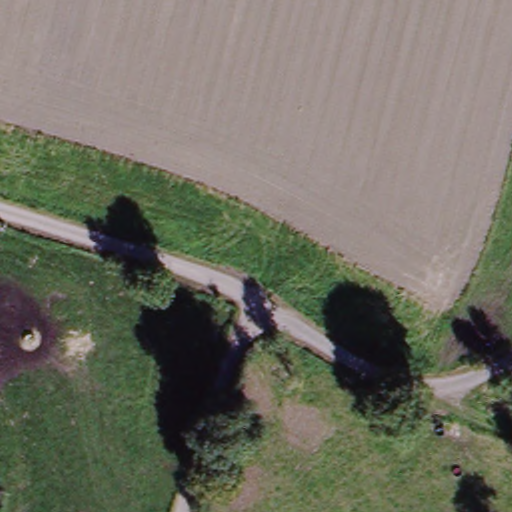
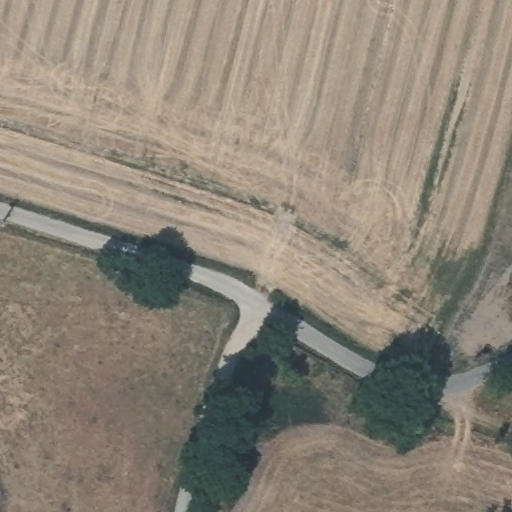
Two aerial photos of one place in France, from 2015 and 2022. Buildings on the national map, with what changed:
[]

